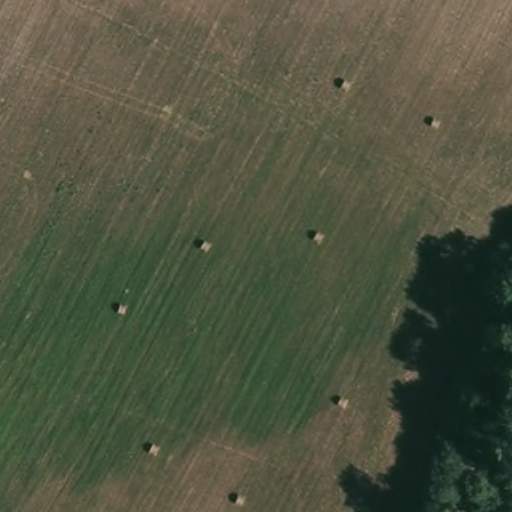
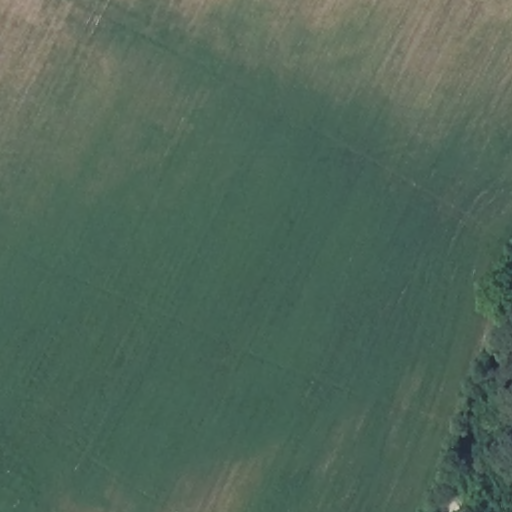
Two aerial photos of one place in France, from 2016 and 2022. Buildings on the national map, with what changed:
[]

